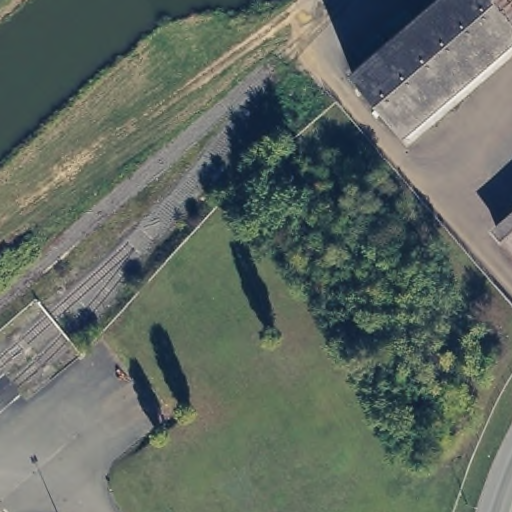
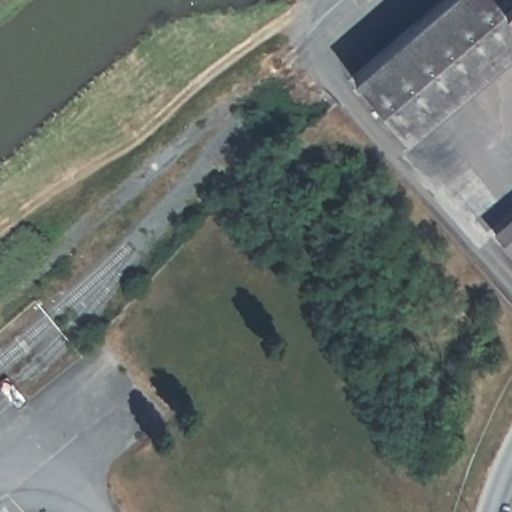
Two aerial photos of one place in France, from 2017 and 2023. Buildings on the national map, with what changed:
unchanged [(512,0),(512,51),(407,140),(353,79),(446,0),(512,0)]
unchanged [(512,217),(512,254),(493,232),(512,217)]

